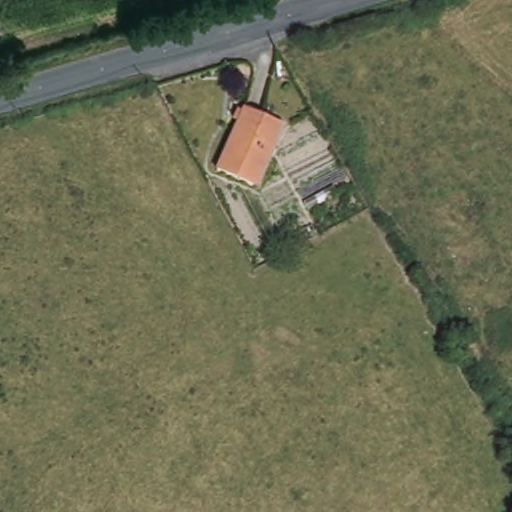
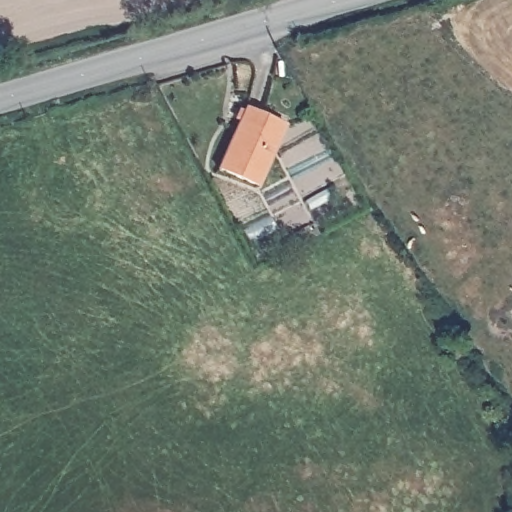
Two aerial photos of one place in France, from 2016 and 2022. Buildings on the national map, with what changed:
unchanged [(282,135),(246,191),(211,167),(247,111),(282,135)]

